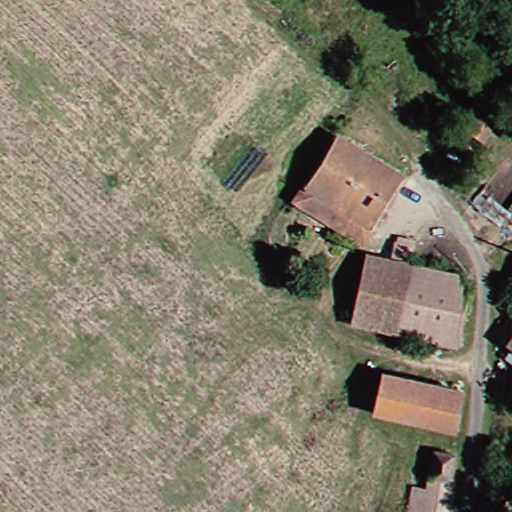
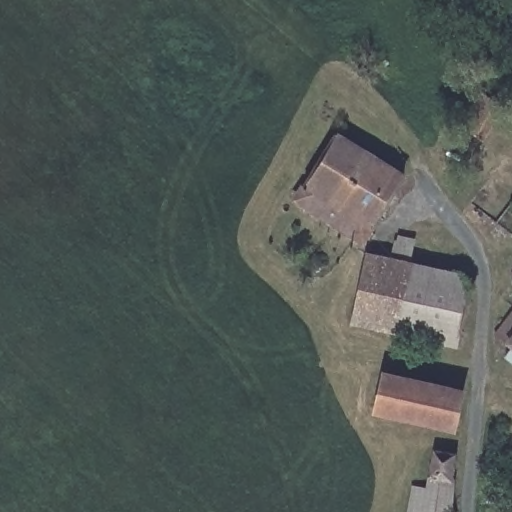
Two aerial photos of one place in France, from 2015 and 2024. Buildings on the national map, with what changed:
unchanged [(312,182),(340,133),(409,174),(382,222),(312,182)]
unchanged [(372,242),(302,202),(312,182),(382,222),(372,242)]
unchanged [(407,255),(410,242),(423,244),(421,259),(471,271),(481,289),(466,347),(390,326),(407,255)]
unchanged [(361,321),(379,252),(407,255),(390,326),(361,321)]
unchanged [(512,329),(512,344),(505,337),(512,329)]
unchanged [(463,424),(384,413),(387,377),(467,384),(463,424)]
unchanged [(459,512),(417,512),(420,493),(436,495),(444,450),(466,453),(459,512)]

